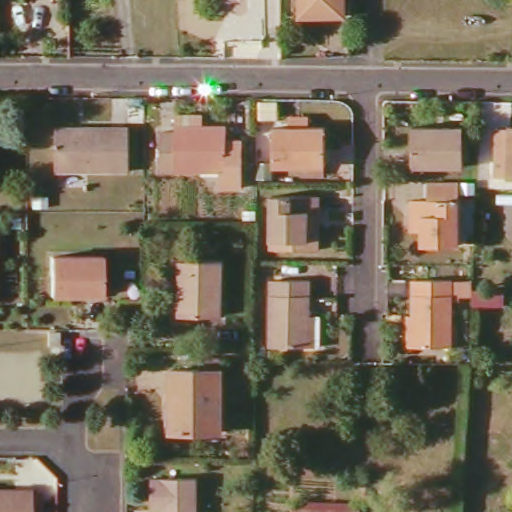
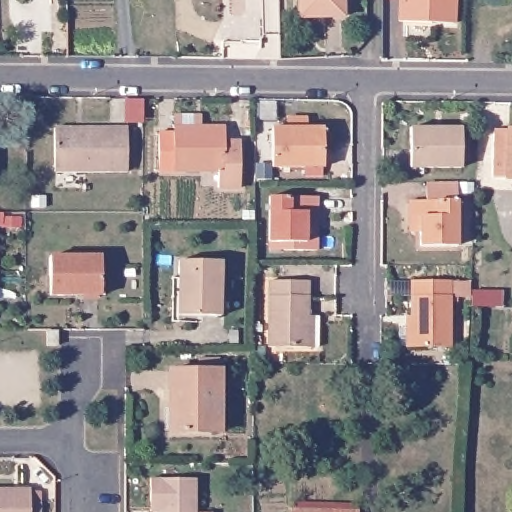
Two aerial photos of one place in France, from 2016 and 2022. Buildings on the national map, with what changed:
unchanged [(339,0),(339,17),(293,18),(293,0),(339,0)]
new [(455,0),(454,25),(400,22),(400,0),(455,0)]
unchanged [(406,125),(457,126),(457,166),(405,165),(406,125)]
unchanged [(495,172),(497,125),(512,126),(512,173),(510,172),(495,172)]
unchanged [(156,133),(199,132),(199,126),(222,126),(222,140),(237,140),(237,180),(217,180),(216,171),(156,171),(156,133)]
unchanged [(53,127),(123,127),(124,170),(53,170),(53,127)]
unchanged [(273,127),(324,129),(322,169),(272,167),(273,127)]
unchanged [(460,239),(452,239),(452,242),(416,243),(416,212),(405,212),(405,195),(422,196),(424,181),(452,182),(452,196),(452,215),(461,216),(460,239)]
unchanged [(265,242),(266,197),(314,197),(314,214),(303,214),(302,240),(313,240),(312,252),(277,252),(265,252),(265,242)]
unchanged [(50,256),(98,256),(98,295),(50,295),(50,256)]
unchanged [(167,321),(169,277),(176,277),(177,258),(220,258),(219,313),(192,313),(192,321),(167,321)]
unchanged [(441,278),(441,279),(457,280),(457,293),(441,293),(441,344),(402,343),(402,277),(441,278)]
unchanged [(317,348),(307,348),(304,348),(267,348),(267,282),(307,282),(307,317),(317,317),(317,348)]
unchanged [(57,331),(57,345),(47,345),(47,331),(57,331)]
unchanged [(170,363),(219,363),(218,427),(169,426),(170,363)]
unchanged [(157,501),(147,501),(148,478),(193,479),(193,512),(157,512),(157,501)]
unchanged [(0,491),(27,491),(27,505),(37,505),(37,512),(0,512),(0,491)]

